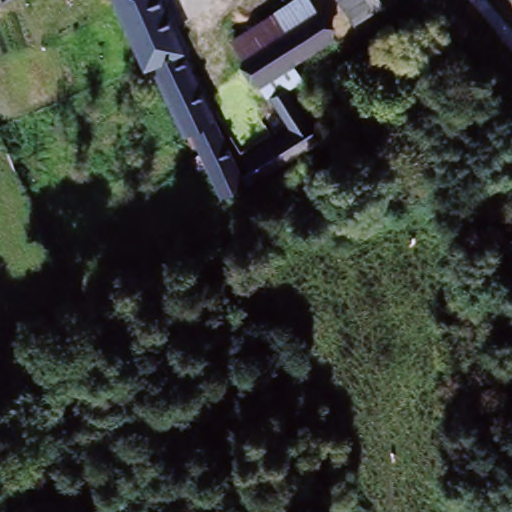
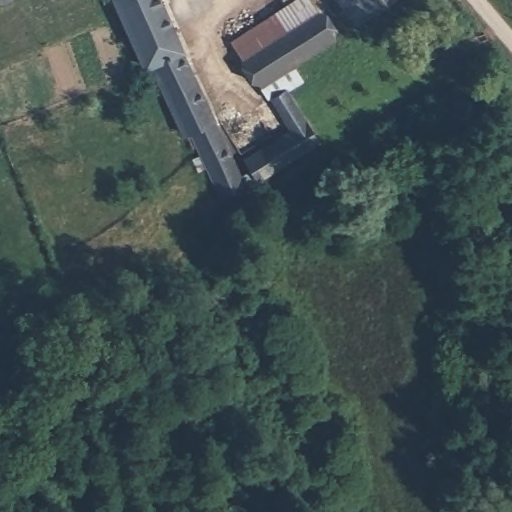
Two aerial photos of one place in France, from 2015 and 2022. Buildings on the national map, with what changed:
unchanged [(10,0),(0,4),(0,0),(10,0)]
unchanged [(185,51),(194,72),(244,180),(247,187),(227,196),(198,135),(192,137),(159,64),(151,67),(122,0),(165,0),(187,50),(185,51)]
unchanged [(235,40),(295,0),(310,0),(316,9),(245,56),(235,40)]
unchanged [(367,0),(378,0),(371,6),(367,0)]
unchanged [(318,46),(290,65),(300,80),(287,87),(303,119),(315,142),(255,175),(245,156),(290,127),(245,56),(316,9),(333,36),(318,46)]

